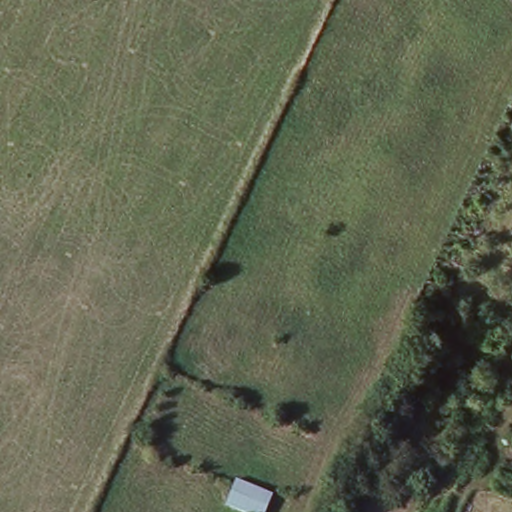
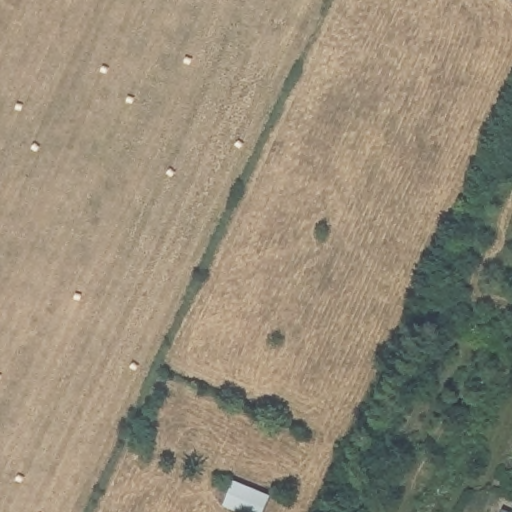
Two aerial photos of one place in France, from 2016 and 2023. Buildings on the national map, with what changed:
unchanged [(223,512),(231,482),(291,503),(288,512),(225,512),(223,512)]

